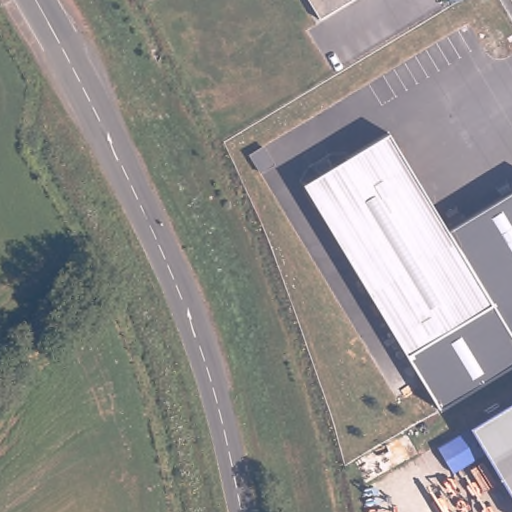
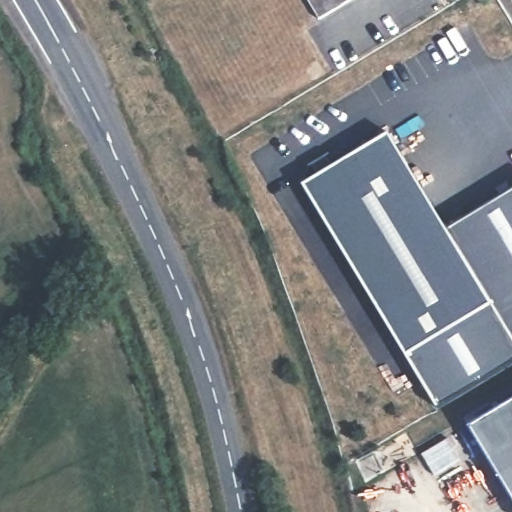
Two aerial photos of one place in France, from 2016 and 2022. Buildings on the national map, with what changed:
unchanged [(306,0),(354,0),(320,22),(306,0)]
unchanged [(303,185),(319,176),(312,164),(328,155),(335,166),(388,134),(492,305),(406,356),(303,185)]
unchanged [(512,361),(436,407),(406,356),(492,305),(447,231),(512,191),(512,361)]
unchanged [(512,399),(512,498),(469,425),(512,399)]
unchanged [(486,455),(451,471),(436,446),(469,425),(486,455)]

